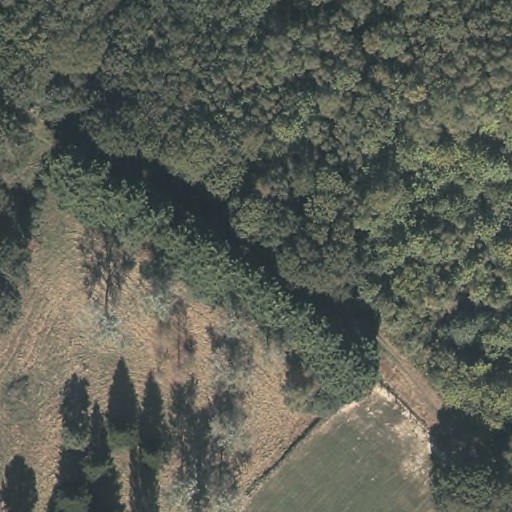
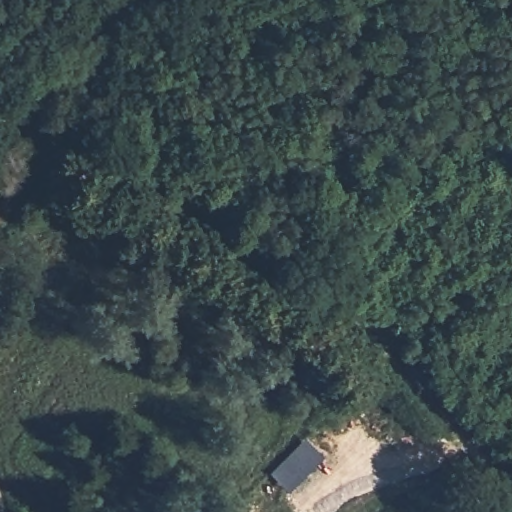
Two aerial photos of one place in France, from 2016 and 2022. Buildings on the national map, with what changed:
new [(307,435),(325,454),(291,488),(273,470),(307,435)]

